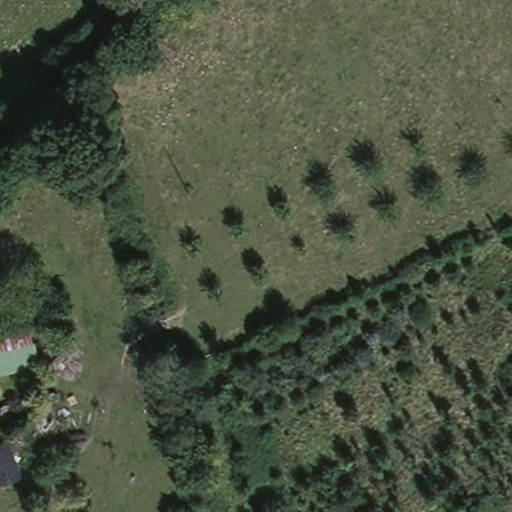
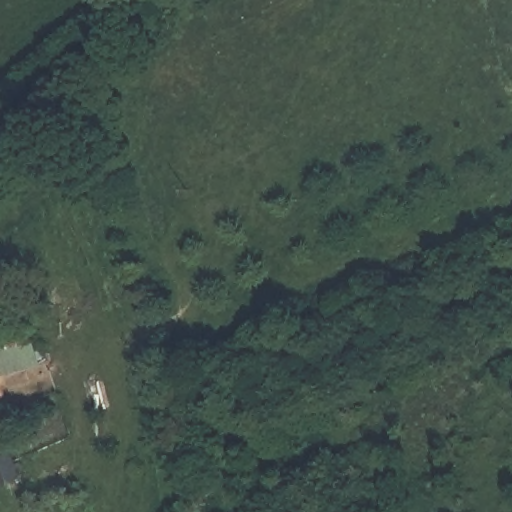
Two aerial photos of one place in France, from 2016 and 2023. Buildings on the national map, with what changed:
unchanged [(30,330),(40,366),(0,376),(0,337),(30,330)]
unchanged [(14,444),(25,481),(4,488),(0,475),(0,448),(14,444)]

